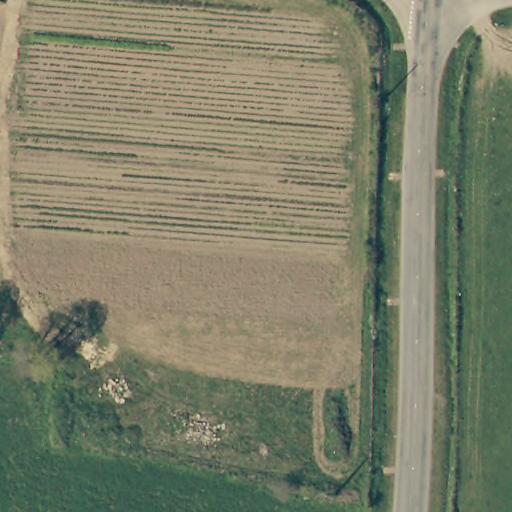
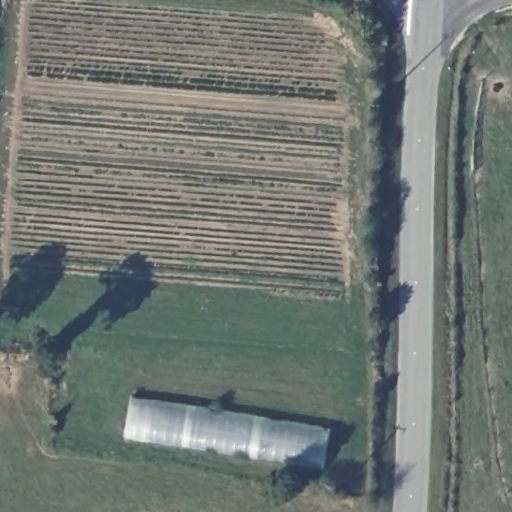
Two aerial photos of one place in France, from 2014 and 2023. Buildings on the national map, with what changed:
new [(327,472),(126,440),(134,397),(334,430),(327,472)]

